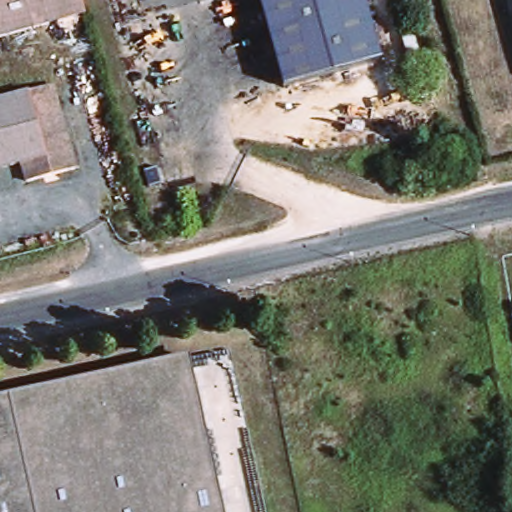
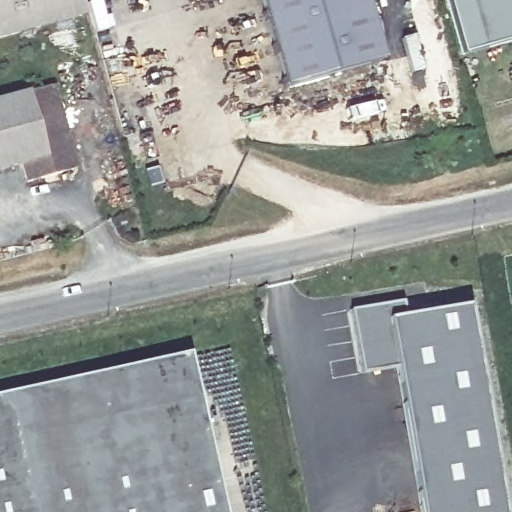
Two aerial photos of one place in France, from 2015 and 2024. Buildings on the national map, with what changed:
unchanged [(87,0),(90,14),(88,15),(0,38),(0,0),(87,0)]
unchanged [(284,90),(259,0),(363,0),(380,63),(284,90)]
new [(415,34),(424,71),(408,74),(399,38),(415,34)]
unchanged [(78,164),(30,178),(25,159),(0,166),(0,97),(54,81),(60,100),(78,164)]
new [(400,306),(403,321),(467,310),(501,512),(416,512),(393,373),(358,378),(347,315),(400,306)]
unchanged [(197,360),(230,512),(0,512),(0,403),(197,360)]

